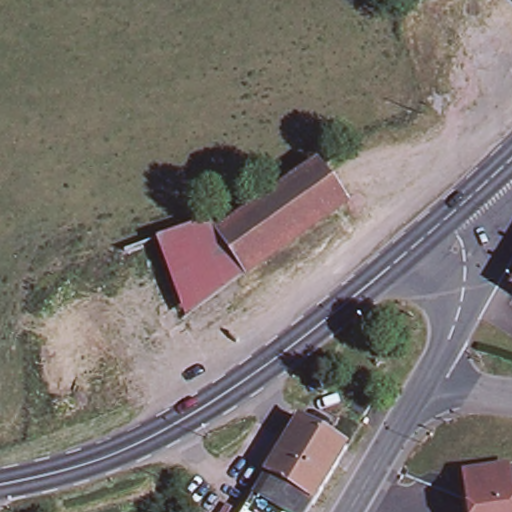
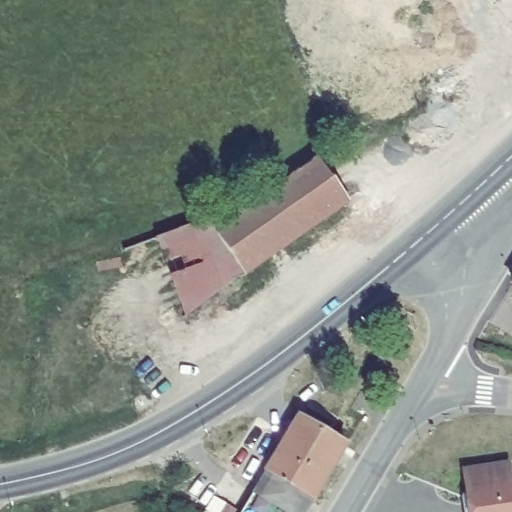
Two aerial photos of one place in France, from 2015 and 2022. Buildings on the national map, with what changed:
unchanged [(217,226),(319,156),(346,195),(247,268),(217,226)]
unchanged [(185,308),(157,233),(210,215),(217,226),(247,268),(185,308)]
unchanged [(364,412),(353,406),(363,392),(373,397),(364,412)]
unchanged [(314,498),(268,470),(300,416),(347,445),(314,498)]
unchanged [(510,489),(512,489),(512,512),(463,512),(460,495),(467,488),(463,470),(507,464),(510,489)]
unchanged [(242,512),(268,470),(314,498),(306,512),(242,512)]

